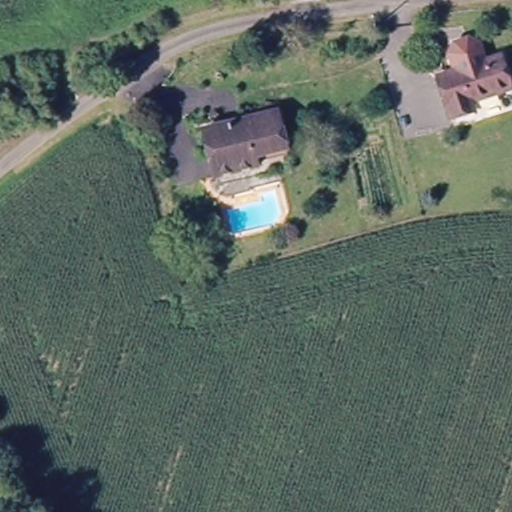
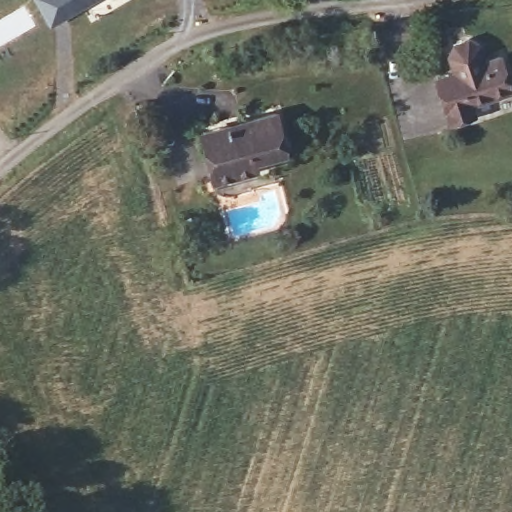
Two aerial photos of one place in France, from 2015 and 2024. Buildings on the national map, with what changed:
new [(50,23),(37,0),(91,0),(50,23)]
unchanged [(454,78),(449,60),(454,50),(467,46),(478,51),(483,69),(499,64),(509,96),(469,109),(472,118),(449,126),(436,84),(454,78)]
unchanged [(255,152),(258,165),(214,178),(202,132),(274,113),(283,146),(255,152)]

